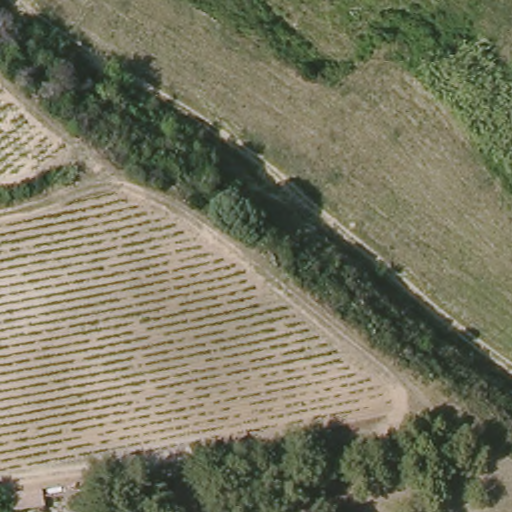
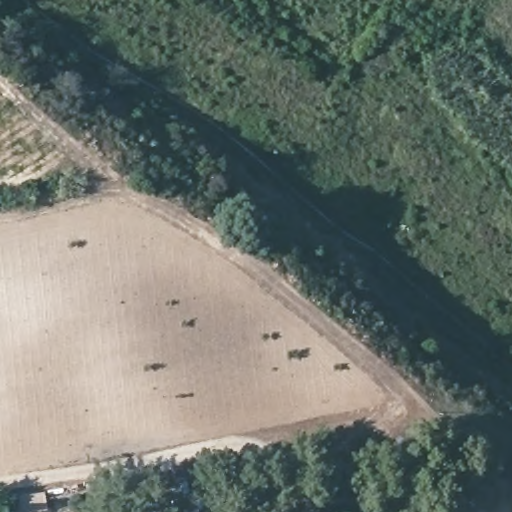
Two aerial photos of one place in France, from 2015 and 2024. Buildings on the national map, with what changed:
unchanged [(33,512),(4,512),(3,495),(45,485),(47,509),(33,512)]

